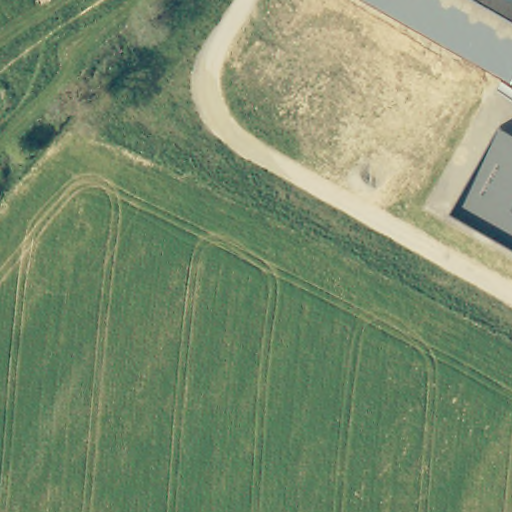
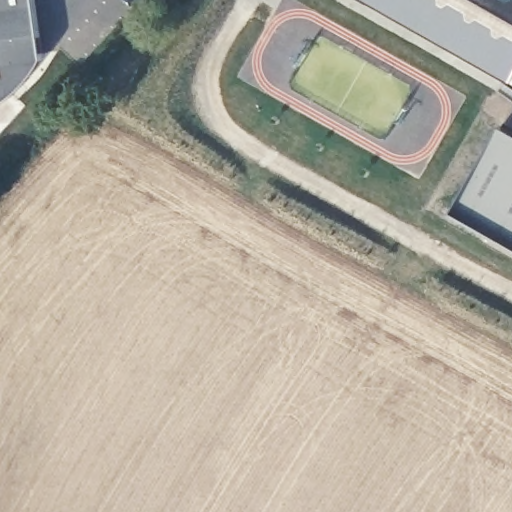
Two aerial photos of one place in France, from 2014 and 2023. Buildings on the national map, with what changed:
new [(37,69),(30,78),(23,86),(14,94),(5,101),(0,104),(0,0),(33,0),(41,59),(37,69)]
unchanged [(367,0),(512,0),(512,78),(367,0)]
unchanged [(451,214),(500,129),(512,135),(512,248),(451,214)]

